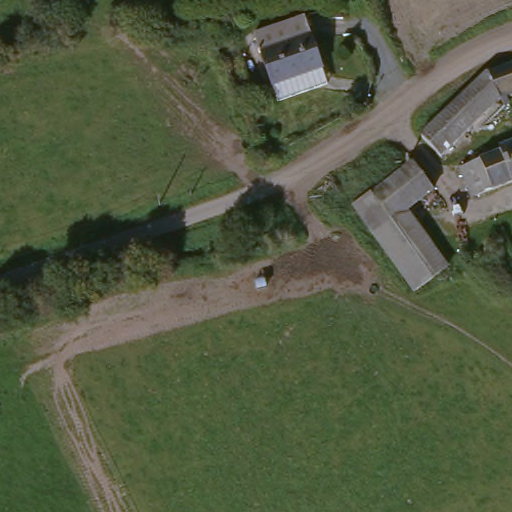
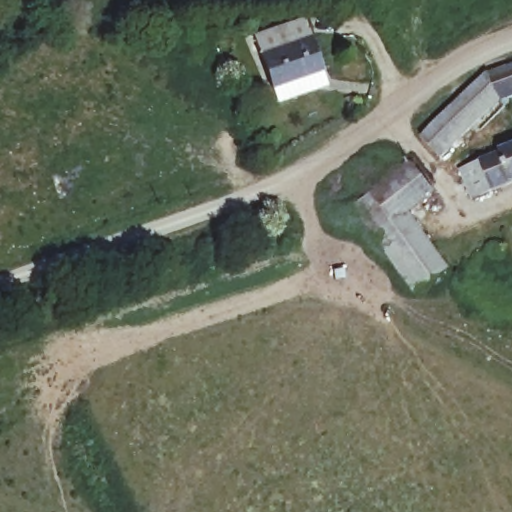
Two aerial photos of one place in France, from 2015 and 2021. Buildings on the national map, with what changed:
unchanged [(322,91),(267,109),(247,40),(301,22),(322,91)]
unchanged [(462,131),(432,159),(416,135),(479,75),(512,62),(512,97),(490,105),(462,131)]
unchanged [(512,179),(487,188),(467,195),(455,160),(475,153),(512,140),(512,179)]
unchanged [(410,293),(350,214),(411,167),(430,193),(402,215),(442,268),(410,293)]

